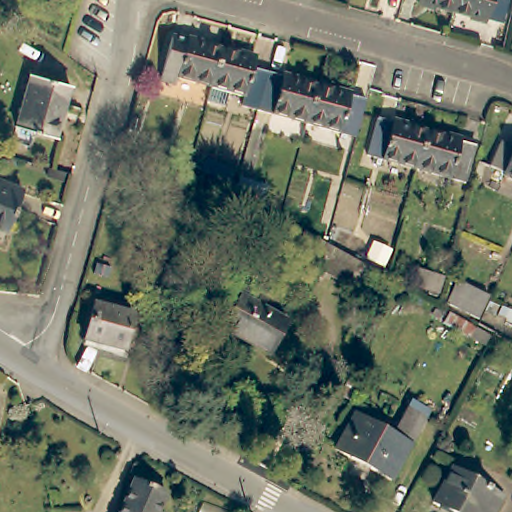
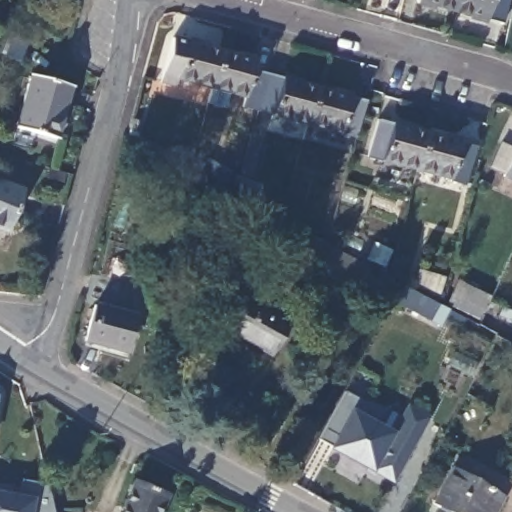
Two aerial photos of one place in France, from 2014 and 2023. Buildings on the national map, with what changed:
unchanged [(458,17),(422,7),(425,0),(462,0),(458,17)]
unchanged [(512,10),(506,30),(458,17),(462,0),(512,0),(512,10)]
unchanged [(215,89),(183,81),(180,87),(164,83),(177,37),(225,50),(215,89)]
unchanged [(261,60),(257,72),(272,76),(261,112),(246,108),(248,98),(215,89),(225,50),(261,60)]
unchanged [(321,89),(311,126),(261,112),(272,76),(321,89)]
unchanged [(68,88),(53,139),(16,128),(31,77),(68,88)]
unchanged [(371,103),(361,140),(311,126),(321,89),(371,103)]
unchanged [(425,171),(376,157),(386,121),(436,134),(425,171)]
unchanged [(485,148),(475,185),(425,171),(436,134),(485,148)]
unchanged [(507,169),(494,163),(505,140),(512,142),(512,174),(507,172),(507,169)]
unchanged [(228,173),(223,184),(200,170),(206,160),(228,173)]
unchanged [(21,192),(6,231),(0,228),(0,184),(21,192)]
unchanged [(374,271),(362,294),(324,273),(328,265),(302,248),(310,235),(374,271)]
unchanged [(443,279),(439,295),(413,287),(418,271),(443,279)]
unchanged [(489,299),(478,320),(446,306),(457,283),(489,299)]
unchanged [(286,323),(267,356),(223,331),(242,298),(286,323)]
unchanged [(133,317),(124,353),(85,343),(93,306),(133,317)]
unchanged [(393,437),(408,410),(426,420),(391,482),(335,452),(355,416),(393,437)]
unchanged [(496,512),(447,512),(434,505),(452,471),(503,498),(496,512)]
new [(9,497),(8,504),(16,505),(21,480),(46,485),(52,512),(0,512),(0,495),(9,497)]
unchanged [(120,512),(132,483),(166,497),(160,512),(120,512)]

